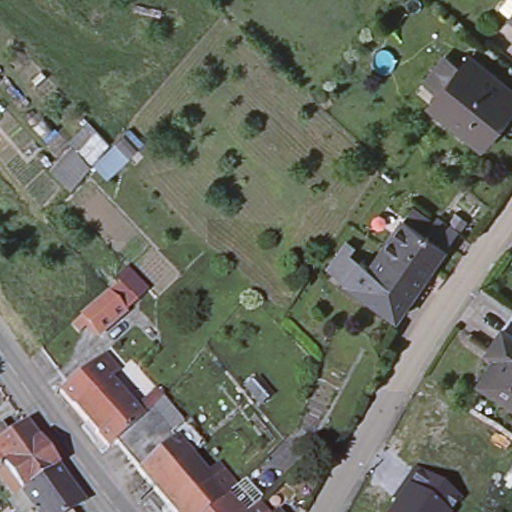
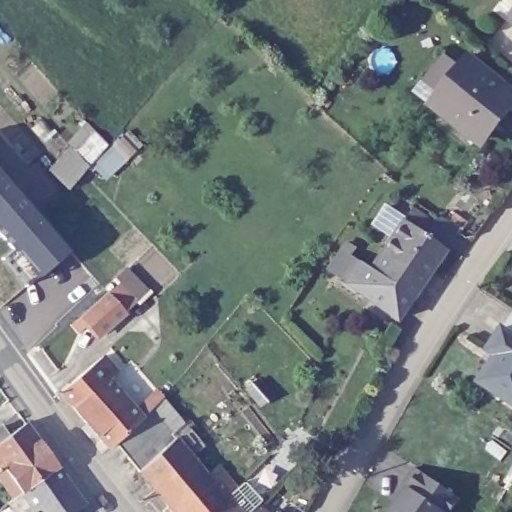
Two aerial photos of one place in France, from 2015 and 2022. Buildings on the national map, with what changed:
unchanged [(507,9),(512,4),(512,13),(507,9)]
unchanged [(509,115),(485,146),(460,125),(438,106),(437,108),(421,96),(423,93),(451,57),(462,65),(470,58),(473,61),(474,60),(496,77),(512,89),(512,112),(509,115)]
unchanged [(80,133),(95,149),(75,171),(62,155),(80,133)]
new [(0,163),(71,244),(37,273),(26,284),(1,256),(13,246),(0,231),(0,163)]
unchanged [(408,208),(430,224),(422,235),(441,250),(407,299),(366,270),(401,219),(408,208)]
unchanged [(407,299),(392,321),(340,285),(335,281),(323,273),(338,251),(356,263),(366,270),(407,299)]
unchanged [(120,282),(116,276),(127,266),(150,287),(102,336),(89,323),(79,331),(72,323),(120,282)]
unchanged [(505,331),(512,321),(512,336),(505,331)]
unchanged [(500,359),(491,353),(505,331),(512,336),(512,405),(482,385),(500,359)]
unchanged [(63,378),(100,348),(114,365),(107,372),(70,400),(56,384),(63,378)]
unchanged [(122,390),(129,385),(135,392),(128,397),(140,410),(112,435),(105,441),(70,400),(107,372),(122,390)]
unchanged [(151,482),(112,435),(140,410),(148,400),(175,433),(180,429),(183,434),(179,437),(189,450),(151,482)]
unchanged [(0,425),(3,429),(22,415),(35,432),(55,459),(71,483),(79,494),(76,496),(65,505),(70,512),(0,512),(0,498),(1,497),(10,491),(0,478),(0,425)]
unchanged [(165,498),(151,482),(189,450),(207,472),(220,463),(233,480),(222,489),(196,512),(167,512),(160,503),(165,498)]
unchanged [(410,486),(405,483),(417,464),(462,494),(451,512),(392,512),(410,486)]
unchanged [(222,489),(232,502),(237,498),(243,506),(236,512),(196,512),(222,489)]
unchanged [(243,506),(255,495),(257,497),(267,509),(275,503),(281,512),(236,512),(243,506)]

